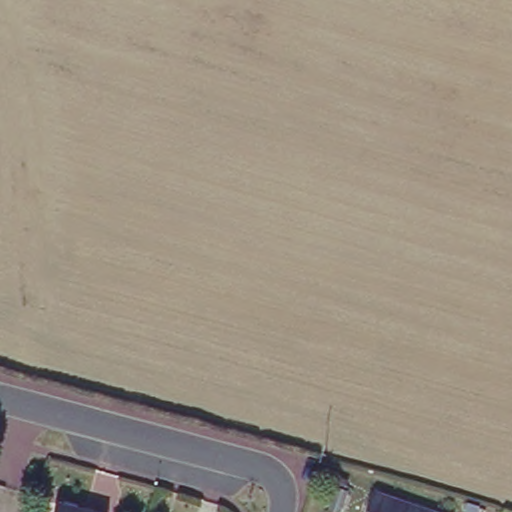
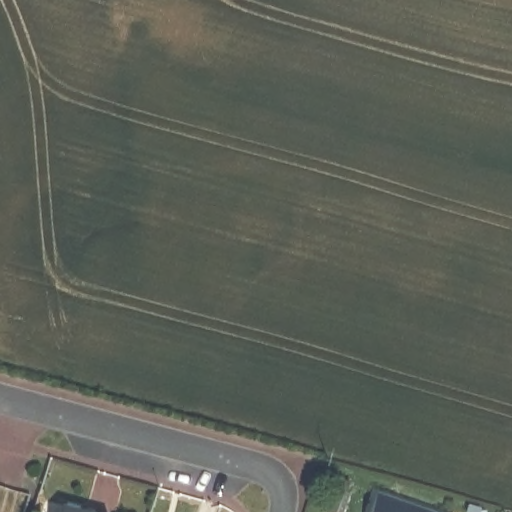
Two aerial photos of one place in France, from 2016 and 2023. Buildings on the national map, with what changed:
unchanged [(439,512),(367,512),(375,490),(439,512)]
unchanged [(89,512),(59,512),(62,503),(89,512)]

